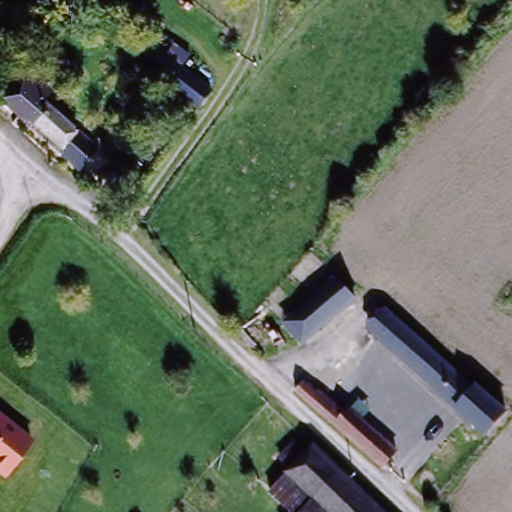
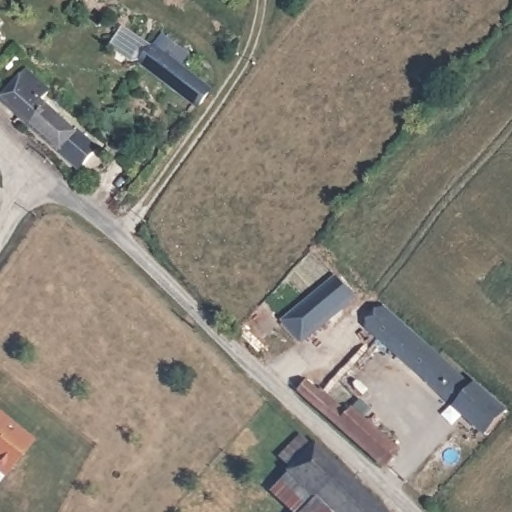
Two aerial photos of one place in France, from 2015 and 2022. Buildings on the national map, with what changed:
unchanged [(198,110),(166,86),(139,65),(151,51),(178,71),(208,95),(198,110)]
unchanged [(6,103),(29,76),(52,97),(43,107),(97,155),(82,172),(14,110),(6,103)]
unchanged [(352,283),(361,292),(303,345),(285,326),(334,281),(343,291),(352,283)]
unchanged [(480,388),(509,415),(489,437),(370,331),(387,313),(476,392),(480,388)]
unchanged [(352,417),(399,458),(387,472),(301,399),(308,392),(320,402),(323,399),(349,421),(352,417)]
unchanged [(0,418),(29,442),(2,476),(0,475),(0,418)]
unchanged [(287,477),(289,475),(278,465),(298,444),(309,454),(310,453),(372,512),(323,512),(314,503),(287,477)]
unchanged [(306,512),(314,503),(323,512),(306,512)]

